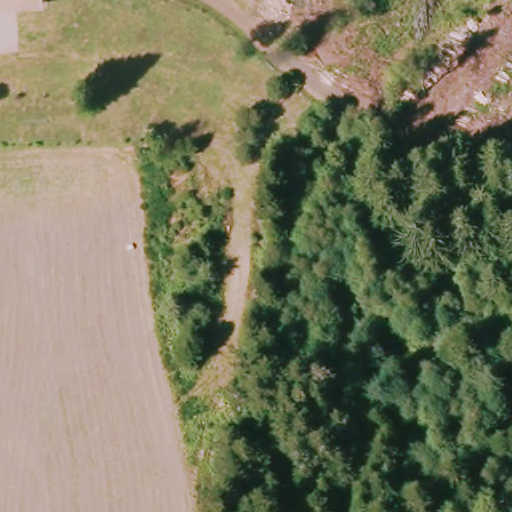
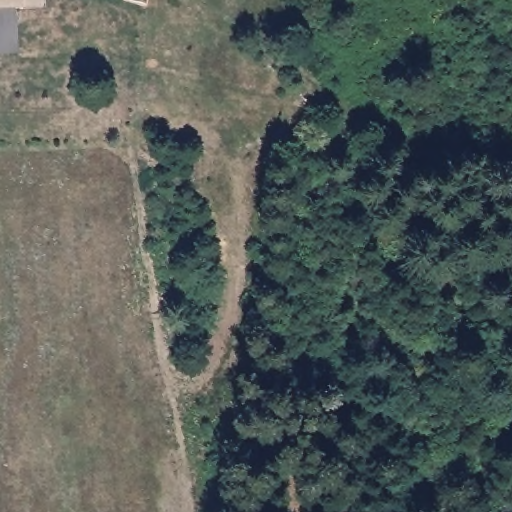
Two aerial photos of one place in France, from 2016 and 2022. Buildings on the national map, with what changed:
unchanged [(44,3),(0,6),(0,0),(44,0),(44,3)]

